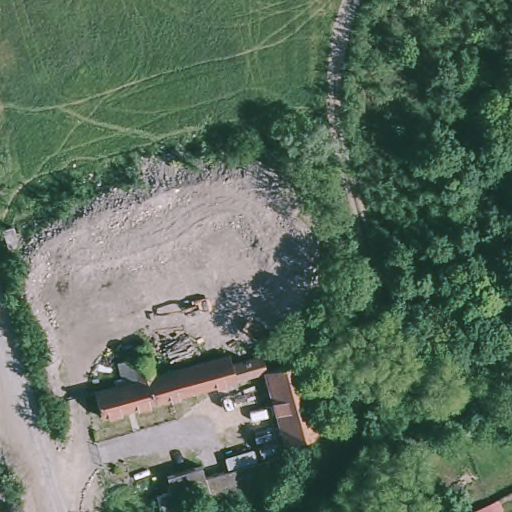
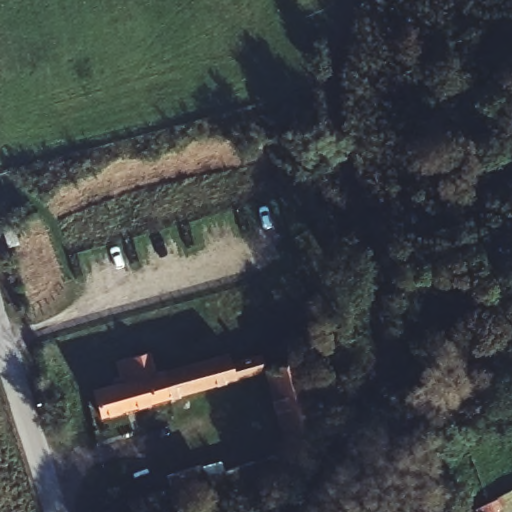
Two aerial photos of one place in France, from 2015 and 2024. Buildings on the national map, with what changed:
unchanged [(146,341),(155,372),(228,349),(231,359),(261,349),(266,364),(299,353),(303,368),(310,366),(317,390),(316,390),(307,393),(316,426),(314,430),(280,439),(258,369),(100,417),(92,391),(112,385),(111,381),(122,378),(117,360),(137,354),(134,345),(146,341)]
unchanged [(157,511),(151,492),(167,487),(163,474),(197,464),(201,476),(283,451),(289,468),(157,511)]

